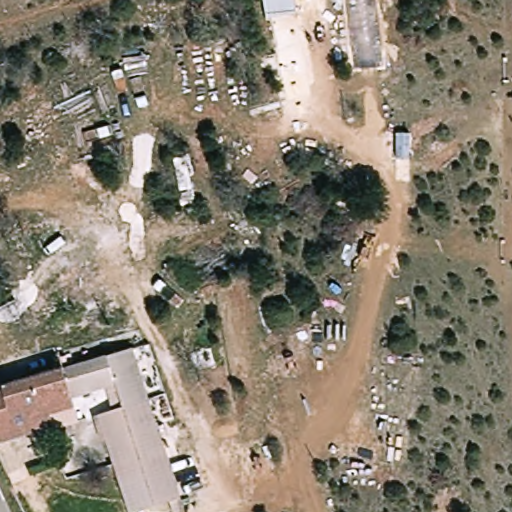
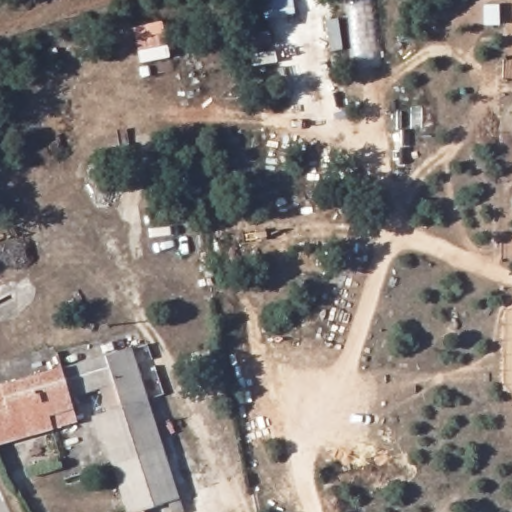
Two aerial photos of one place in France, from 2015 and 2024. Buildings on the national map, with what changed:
unchanged [(193,512),(179,512),(176,505),(150,512),(132,512),(100,417),(115,413),(110,395),(77,402),(78,408),(73,410),(56,370),(138,347),(193,512)]
unchanged [(48,417),(50,432),(0,446),(0,387),(56,370),(73,410),(48,417)]

